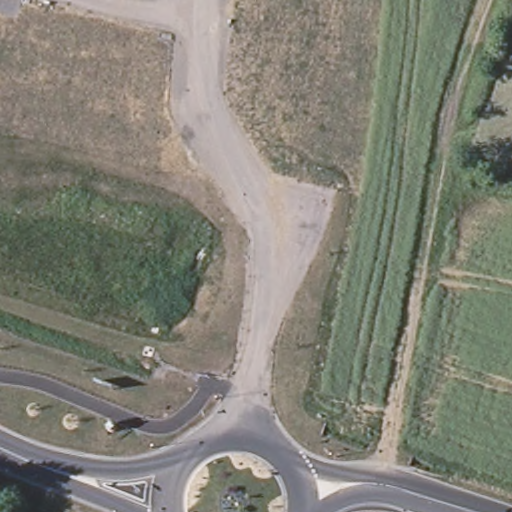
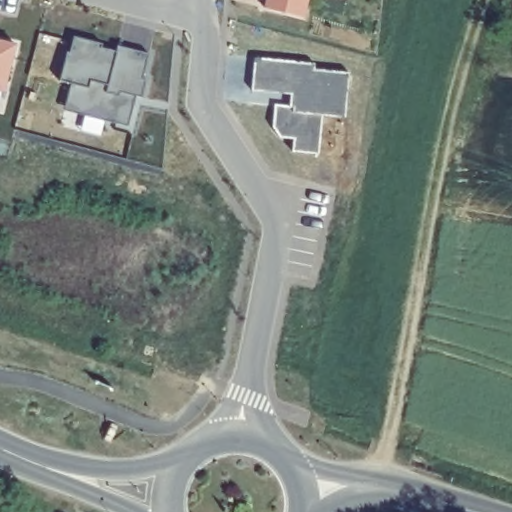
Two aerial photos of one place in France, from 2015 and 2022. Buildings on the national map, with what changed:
new [(302,17),(263,7),(265,0),(306,0),(302,17)]
new [(15,37),(3,85),(0,84),(0,33),(15,37)]
new [(128,126),(104,120),(107,111),(92,107),(91,113),(65,106),(70,84),(60,81),(67,52),(69,52),(73,36),(102,43),(101,47),(115,50),(117,45),(148,52),(142,77),(147,79),(142,97),(136,95),(133,105),(128,126)]
new [(315,65),(314,71),(349,75),(345,120),(323,117),(319,155),(294,152),(295,141),(281,139),(275,128),(277,107),(290,109),(292,95),(253,91),(255,60),(315,65)]

